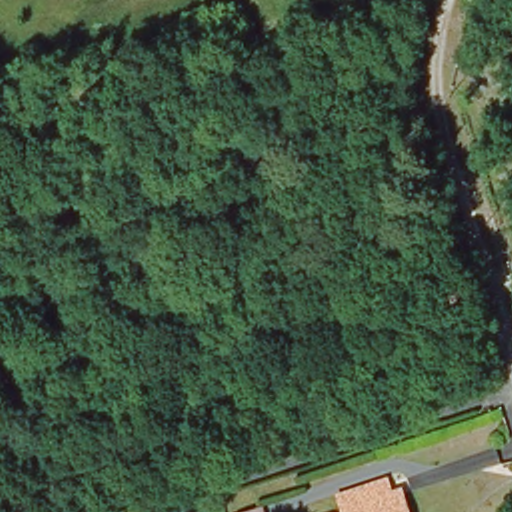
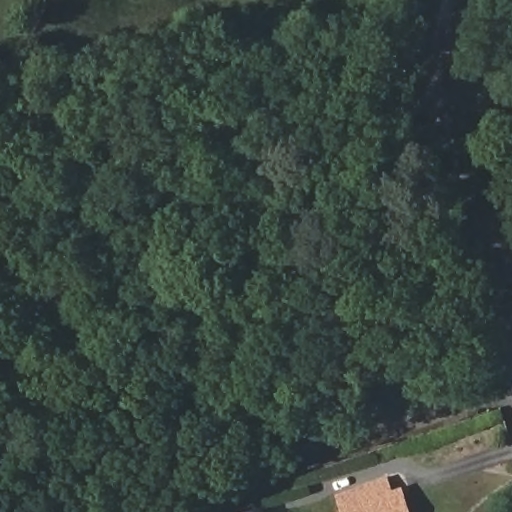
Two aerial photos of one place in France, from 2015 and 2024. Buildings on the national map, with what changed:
unchanged [(385,498),(391,512),(342,512),(385,498)]
unchanged [(265,501),(268,512),(238,512),(237,510),(265,501)]
unchanged [(399,510),(400,512),(391,512),(399,510)]

